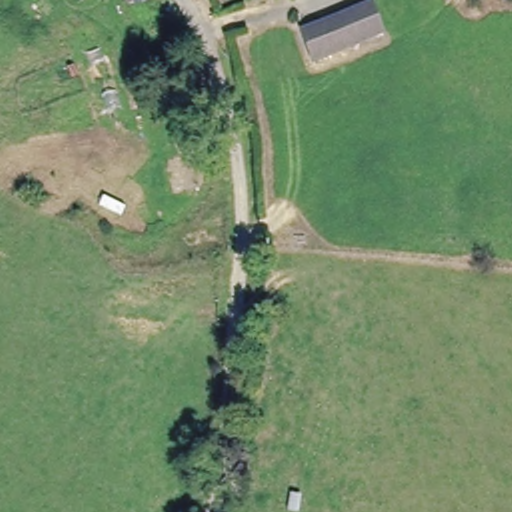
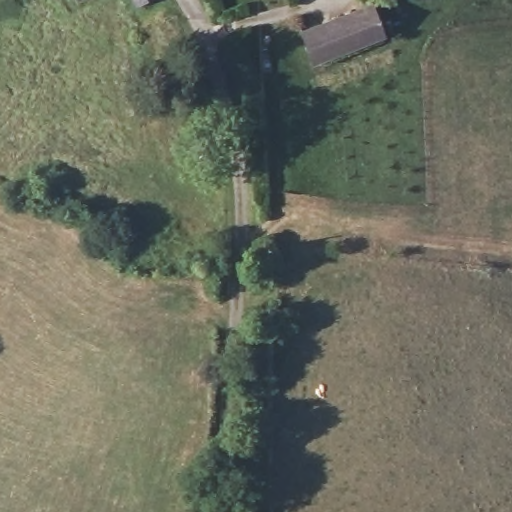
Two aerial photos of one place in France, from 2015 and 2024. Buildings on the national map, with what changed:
unchanged [(163,0),(165,4),(142,15),(135,1),(136,0),(163,0)]
unchanged [(307,34),(378,8),(390,41),(317,65),(307,34)]

